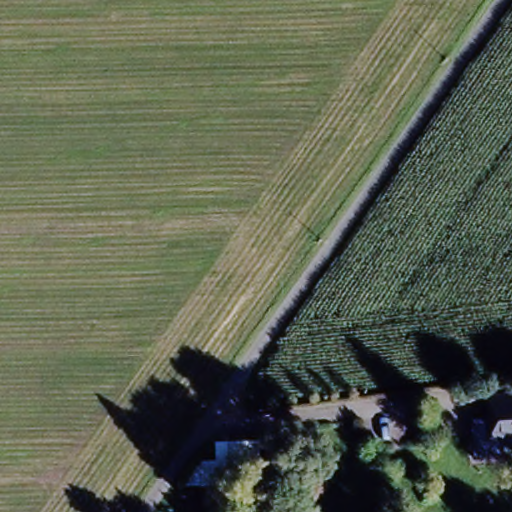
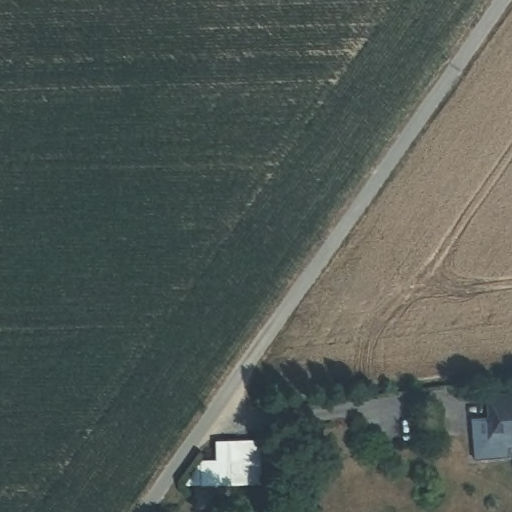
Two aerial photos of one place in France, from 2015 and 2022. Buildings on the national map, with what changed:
unchanged [(492,416),(490,397),(506,395),(508,398),(512,397),(512,413),(492,416)]
unchanged [(492,416),(512,413),(512,435),(493,437),(492,416)]
unchanged [(240,446),(244,483),(217,486),(214,450),(240,446)]

